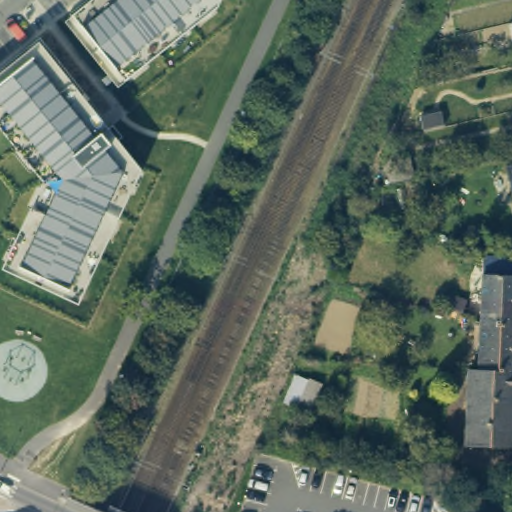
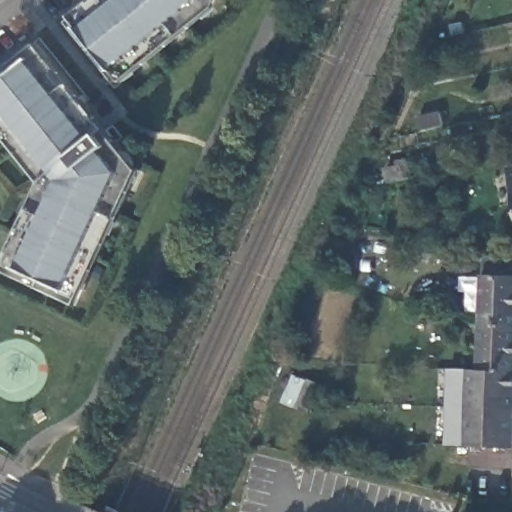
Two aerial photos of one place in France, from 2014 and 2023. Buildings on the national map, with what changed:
unchanged [(73,18),(95,0),(220,0),(216,9),(124,81),(73,18)]
unchanged [(42,181),(0,130),(0,75),(39,44),(140,171),(79,306),(2,269),(42,181)]
unchanged [(384,165),(408,159),(413,177),(389,183),(384,165)]
unchanged [(501,169),(512,167),(512,215),(501,169)]
unchanged [(473,272),(471,275),(469,277),(467,278),(463,279),(459,277),(456,275),(455,272),(454,269),(456,265),(458,262),(463,260),(467,261),(471,264),(472,266),(473,268),(473,272)]
unchanged [(484,276),(512,278),(512,371),(481,370),(484,276)]
unchanged [(464,311),(448,305),(453,293),(469,299),(464,311)]
unchanged [(467,445),(469,369),(481,370),(512,371),(512,446),(467,445)]
unchanged [(306,418),(282,407),(283,404),(294,381),(318,392),(307,416),(306,418)]

